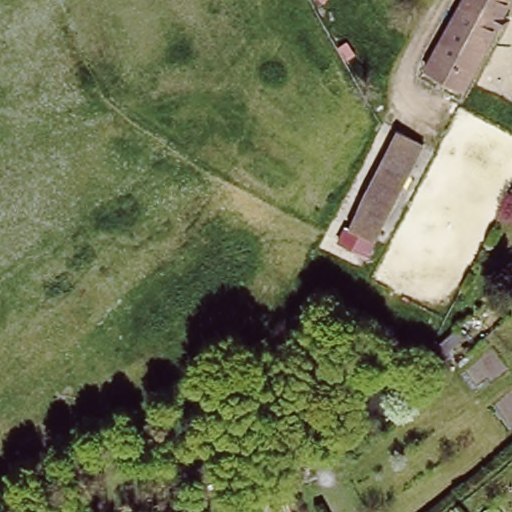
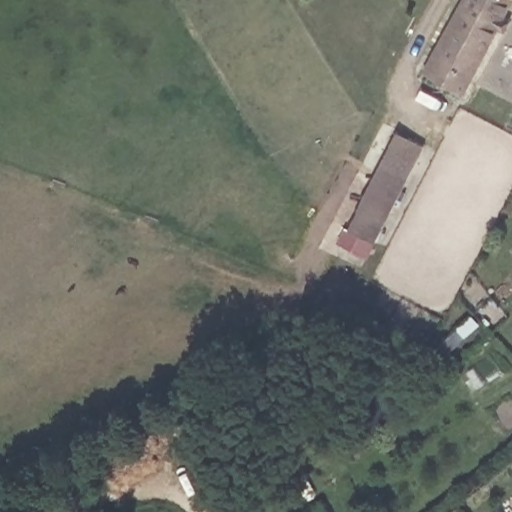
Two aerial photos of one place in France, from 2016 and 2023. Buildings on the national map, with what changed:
unchanged [(458,0),(505,0),(464,82),(427,63),(458,0)]
unchanged [(423,142),(365,258),(335,242),(341,224),(348,226),(395,127),(423,142)]

